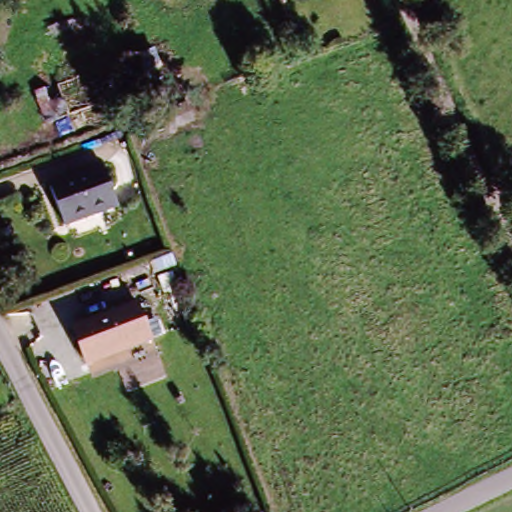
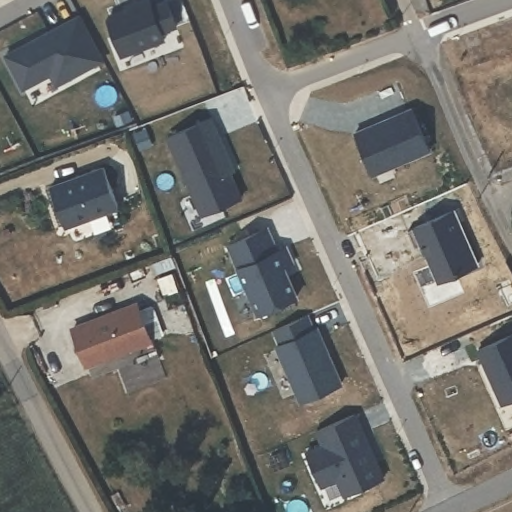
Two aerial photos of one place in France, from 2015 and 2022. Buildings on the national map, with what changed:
new [(115,17),(137,9),(136,6),(151,0),(154,0),(157,8),(172,2),(182,28),(167,34),(170,41),(127,58),(112,21),(115,17)]
new [(109,62),(62,87),(56,76),(28,91),(10,58),(85,17),(109,62)]
demolished [(55,85),(142,54),(157,89),(71,120),(55,85)]
new [(411,113),(429,153),(374,178),(356,138),(411,113)]
new [(211,120),(220,140),(236,174),(232,175),(216,141),(243,200),(204,217),(168,140),(211,120)]
unchanged [(99,165),(115,208),(64,226),(46,185),(99,165)]
new [(476,267),(438,285),(422,249),(415,251),(407,235),(451,215),(476,267)]
new [(226,251),(265,233),(275,256),(285,251),(292,267),(282,272),(297,301),(258,319),(226,251)]
unchanged [(137,302),(152,338),(90,364),(75,328),(137,302)]
new [(278,353),(282,351),(275,337),(307,322),(313,336),(317,335),(342,388),(303,406),(278,353)]
new [(477,352),(512,335),(512,399),(502,405),(477,352)]
new [(388,480),(351,498),(344,482),(328,490),(312,455),(327,448),(321,435),(358,417),(388,480)]

